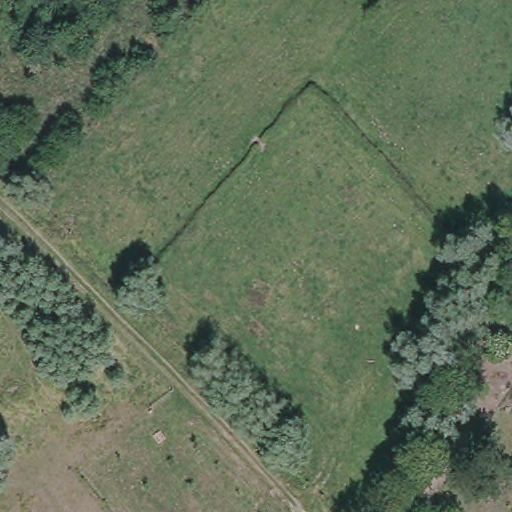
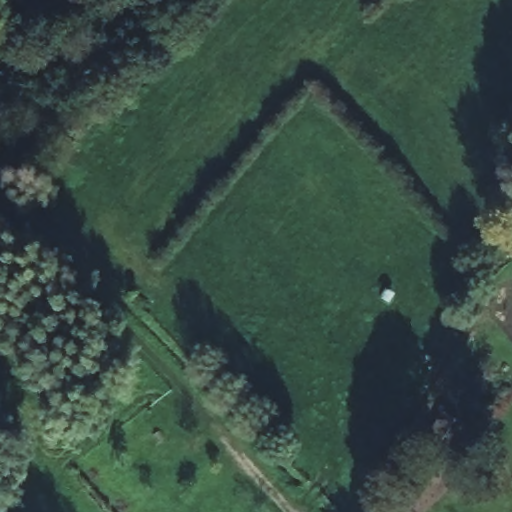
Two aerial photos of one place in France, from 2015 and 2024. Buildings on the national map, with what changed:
[]

